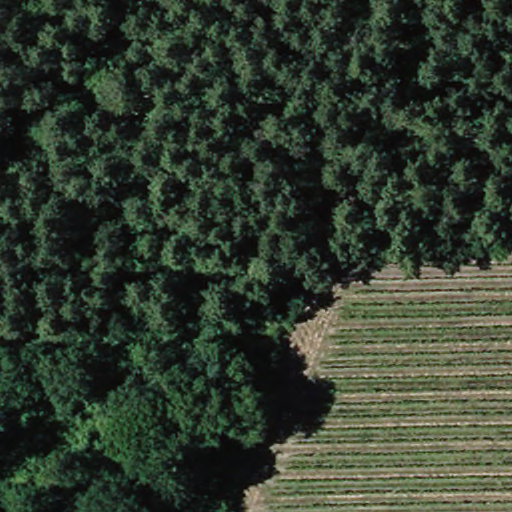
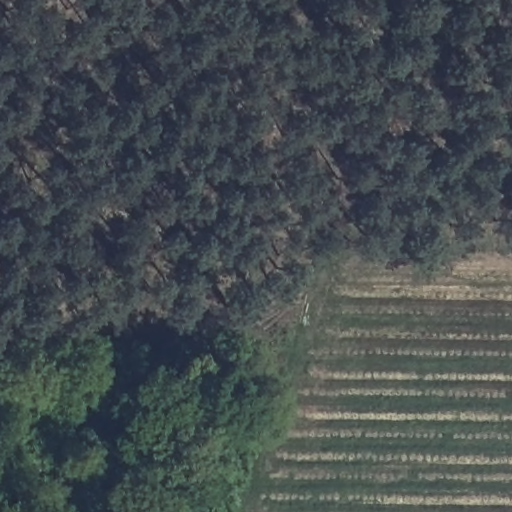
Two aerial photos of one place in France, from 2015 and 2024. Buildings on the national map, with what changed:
[]

